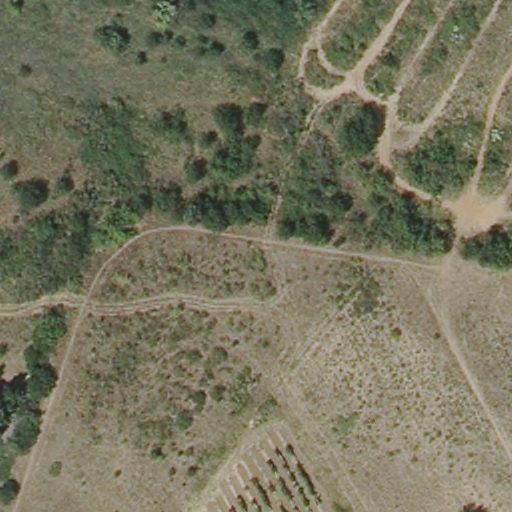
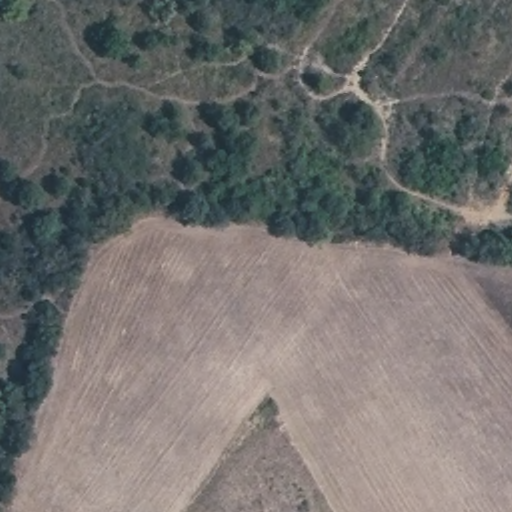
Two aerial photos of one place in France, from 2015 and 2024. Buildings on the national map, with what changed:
[]

